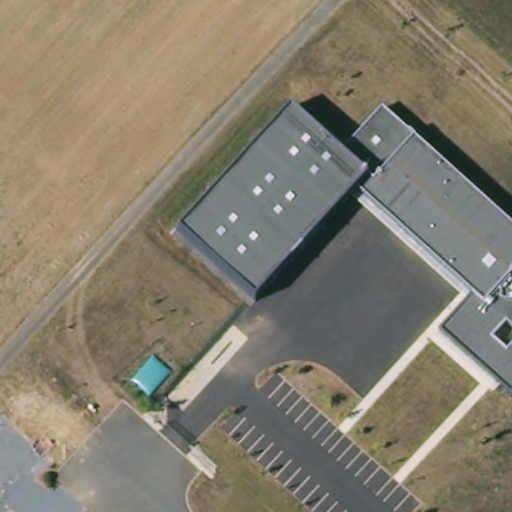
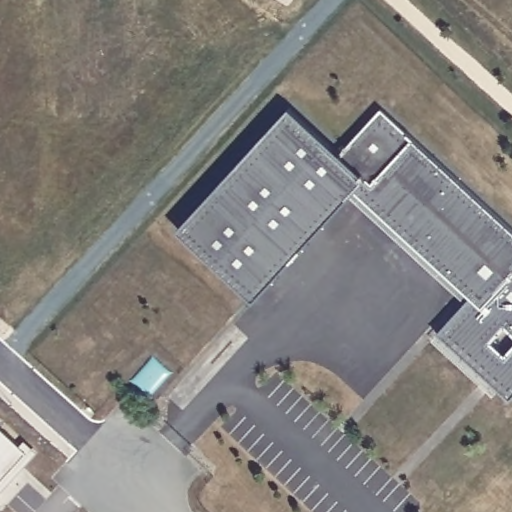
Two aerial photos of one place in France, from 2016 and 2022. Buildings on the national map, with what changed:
unchanged [(178,231),(290,109),(340,153),(383,110),(512,229),(512,397),(510,400),(438,336),(471,298),(354,188),(254,301),(178,231)]
new [(0,483),(0,429),(27,454),(0,483)]

